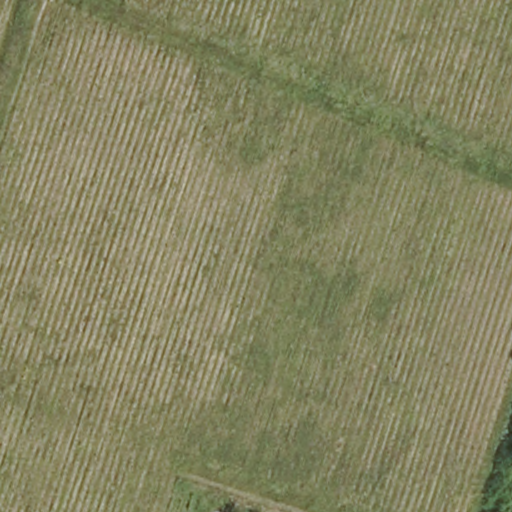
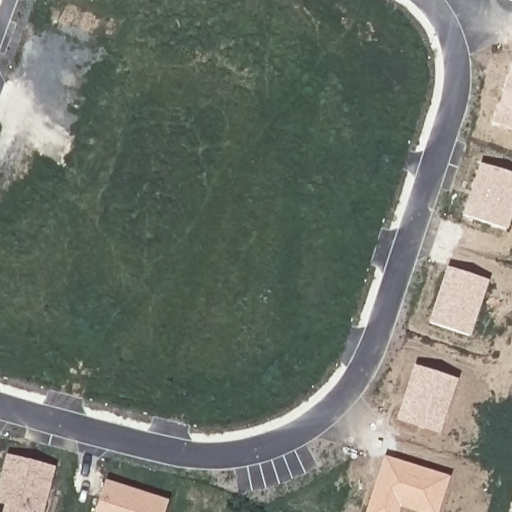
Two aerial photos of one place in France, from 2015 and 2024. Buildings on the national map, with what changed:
new [(492,123),(512,62),(512,129),(492,123)]
new [(484,223),(464,216),(481,164),(512,174),(512,213),(510,219),(493,214),(491,219),(486,217),(484,223)]
new [(488,281),(471,336),(428,322),(446,267),(488,281)]
new [(457,379),(439,434),(396,421),(413,365),(457,379)]
new [(0,512),(0,486),(8,455),(55,467),(43,512),(0,512)]
new [(415,512),(400,507),(398,512),(366,512),(384,456),(449,477),(438,512),(415,512)]
new [(165,512),(96,512),(106,481),(169,501),(165,512)]

